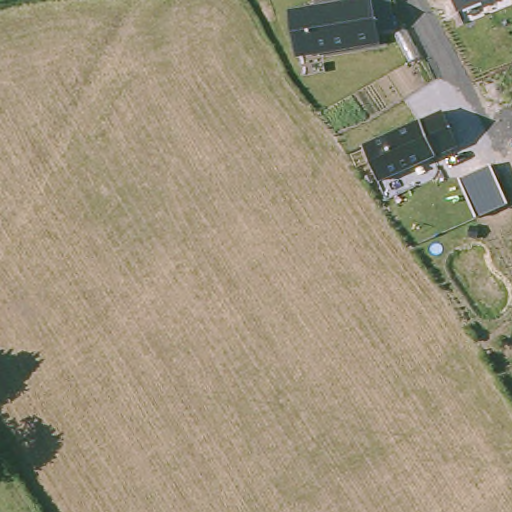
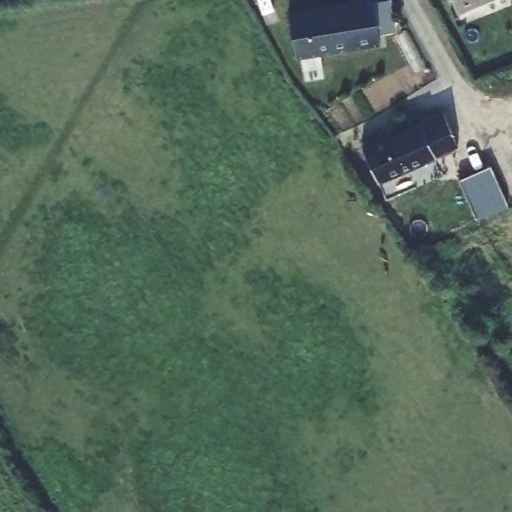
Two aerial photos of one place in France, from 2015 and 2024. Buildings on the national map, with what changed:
unchanged [(376,0),(384,45),(296,58),(289,10),(368,0),(376,0)]
unchanged [(451,0),(490,0),(457,13),(451,0)]
unchanged [(454,113),(468,145),(457,150),(457,151),(377,188),(362,153),(454,113)]
unchanged [(508,207),(476,219),(459,180),(490,165),(508,207)]

